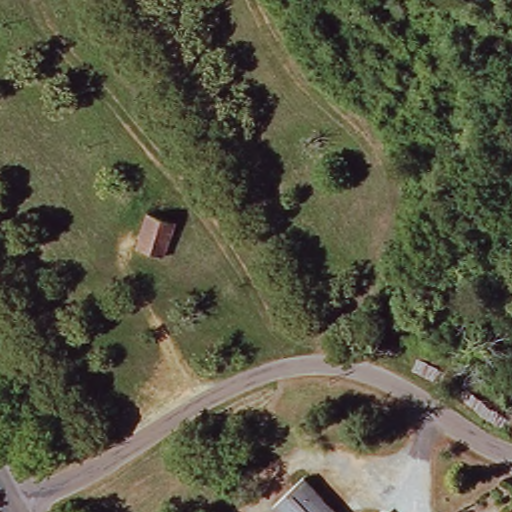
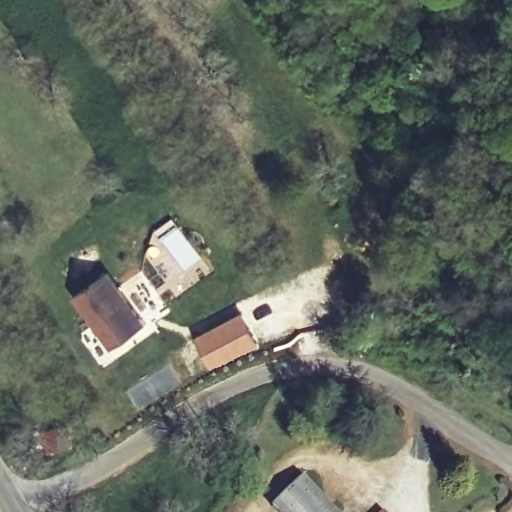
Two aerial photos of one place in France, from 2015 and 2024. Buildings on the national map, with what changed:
demolished [(165,254),(139,245),(150,210),(177,219),(165,254)]
new [(105,269),(143,322),(110,345),(72,293),(105,269)]
new [(259,347),(212,371),(195,337),(241,312),(259,347)]
unchanged [(312,481),(339,512),(284,512),(280,507),(312,481)]

